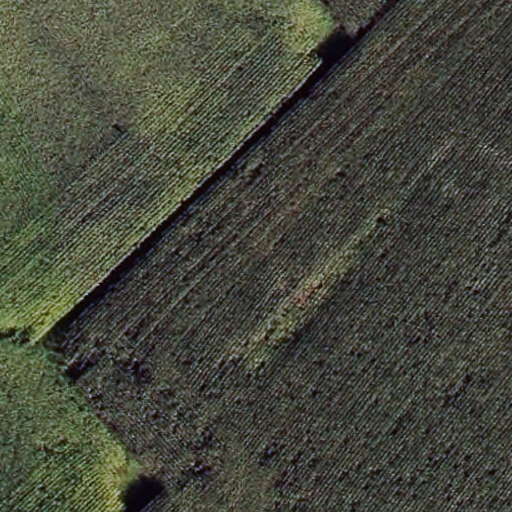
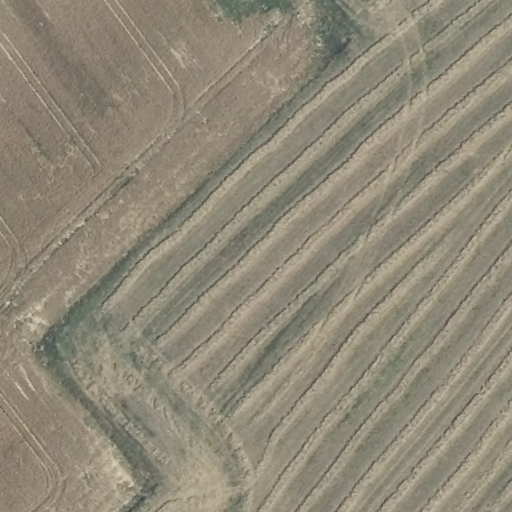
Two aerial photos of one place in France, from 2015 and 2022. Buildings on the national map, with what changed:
[]

